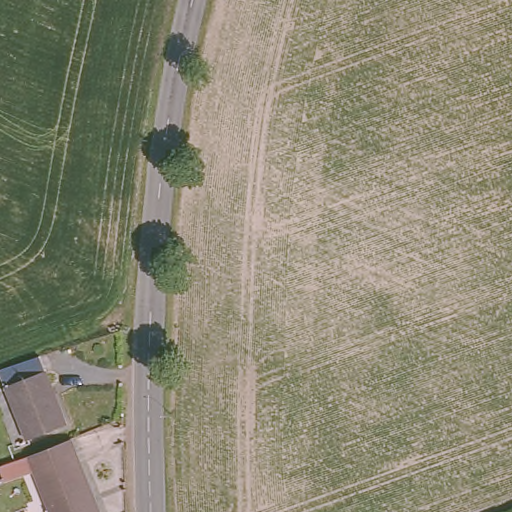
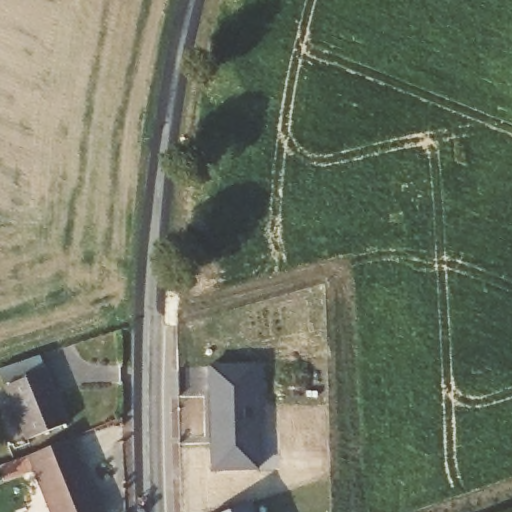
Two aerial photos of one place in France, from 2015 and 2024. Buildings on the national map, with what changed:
unchanged [(8,372),(27,366),(50,359),(55,371),(75,421),(35,438),(15,388),(8,372)]
new [(212,469),(209,370),(217,370),(217,365),(255,364),(259,472),(212,469)]
unchanged [(4,482),(0,473),(0,467),(28,455),(75,436),(102,502),(93,506),(95,512),(51,512),(34,470),(4,482)]
new [(254,512),(230,512),(251,504),(254,512)]

